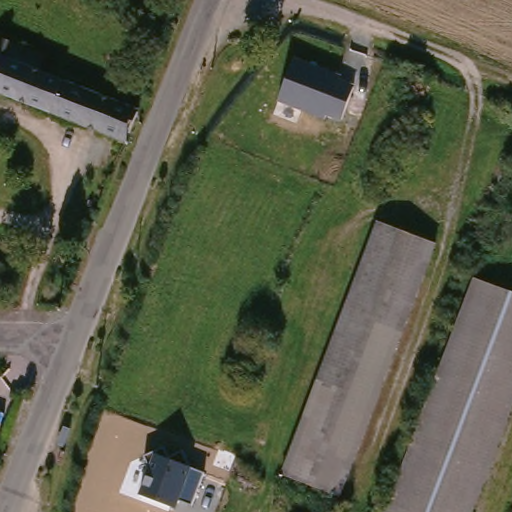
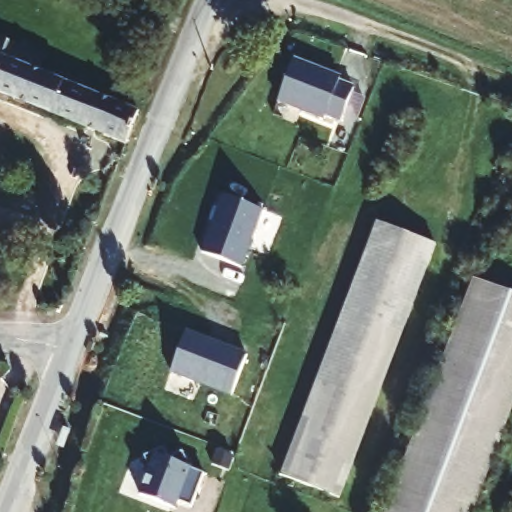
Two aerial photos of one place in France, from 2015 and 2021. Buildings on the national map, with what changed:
unchanged [(0,44),(12,48),(45,61),(40,77),(140,116),(127,149),(0,99),(0,44)]
unchanged [(293,60),(333,74),(335,77),(345,80),(346,84),(353,86),(340,122),(326,116),(325,120),(278,103),(293,60)]
new [(242,269),(200,252),(222,194),(263,211),(242,269)]
unchanged [(282,474),(378,224),(437,245),(341,497),(282,474)]
unchanged [(480,279),(512,291),(512,402),(470,512),(389,512),(480,279)]
new [(247,354),(231,397),(170,373),(186,331),(247,354)]
unchanged [(150,465),(144,457),(165,446),(171,459),(183,453),(188,468),(202,473),(191,506),(177,500),(175,509),(140,496),(150,465)]
unchanged [(379,509),(386,512),(378,512),(379,509)]

